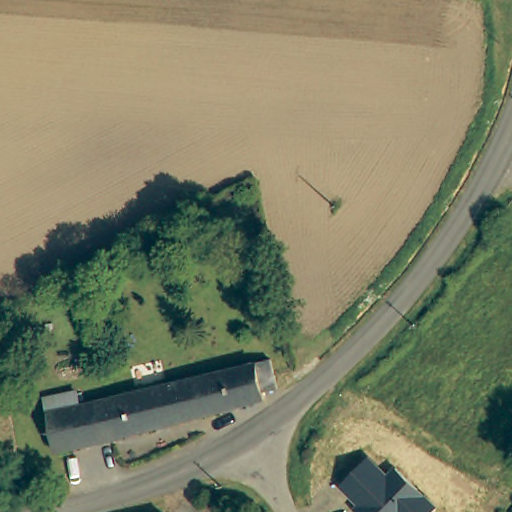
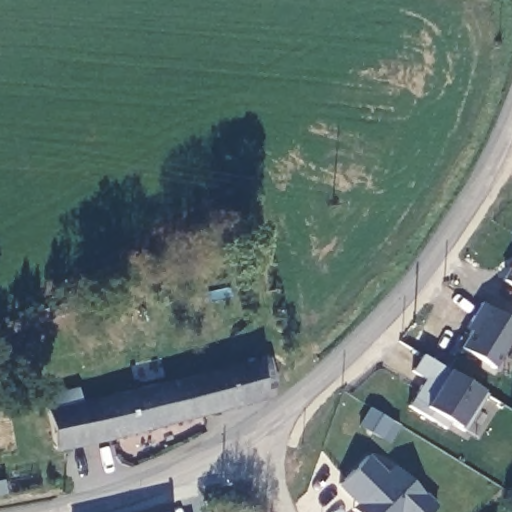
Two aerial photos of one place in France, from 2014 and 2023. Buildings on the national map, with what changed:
unchanged [(200,226),(199,230),(197,233),(194,235),(190,236),(186,235),(184,233),(181,229),(181,225),(184,222),(190,218),(200,226)]
new [(512,285),(502,279),(512,261),(512,285)]
new [(467,326),(481,302),(512,321),(512,339),(492,368),(460,347),(470,330),(467,326)]
new [(447,370),(480,391),(486,395),(463,431),(450,422),(445,429),(408,404),(423,379),(411,372),(421,355),(447,370)]
unchanged [(95,380),(116,373),(139,368),(145,389),(262,362),(268,390),(257,393),(258,402),(50,451),(42,412),(39,397),(69,390),(72,406),(99,401),(95,380)]
unchanged [(386,474),(396,465),(439,507),(434,512),(355,512),(352,509),(356,506),(338,486),(368,456),(386,474)]

